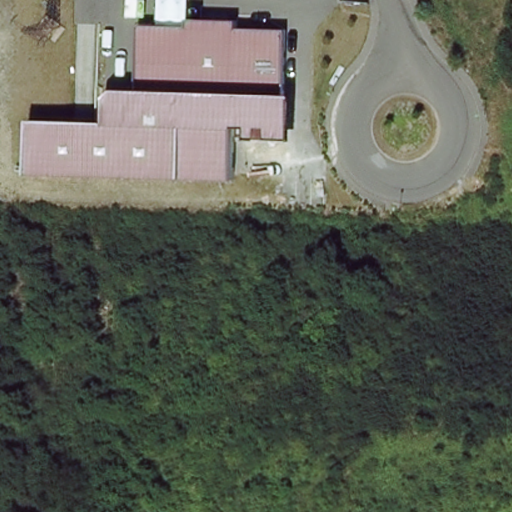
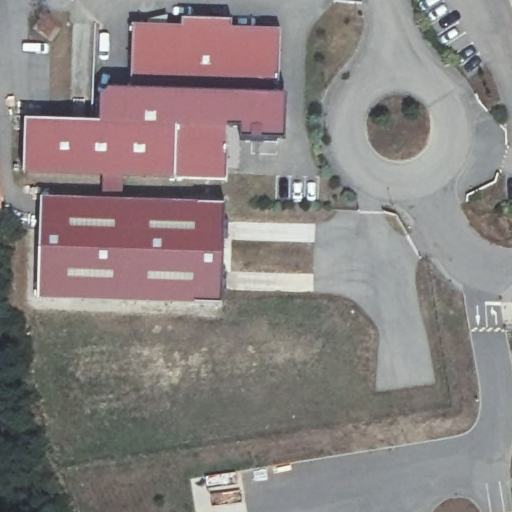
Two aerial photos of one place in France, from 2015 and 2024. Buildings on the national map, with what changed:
unchanged [(231,30),(280,32),(277,131),(228,129),(226,182),(121,179),(77,178),(27,176),(28,122),(99,124),(100,99),(130,100),(134,27),(182,29),(181,20),(230,21),(231,30)]
new [(76,198),(77,178),(121,179),(122,198),(214,201),(213,300),(25,295),(29,196),(76,198)]

